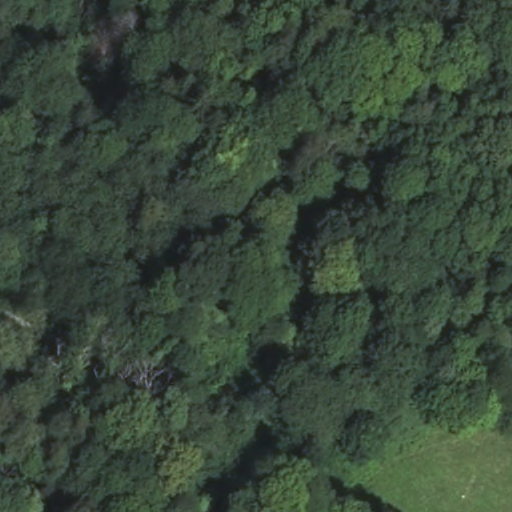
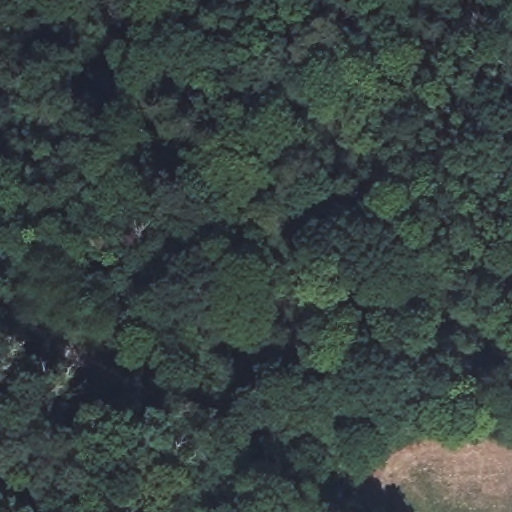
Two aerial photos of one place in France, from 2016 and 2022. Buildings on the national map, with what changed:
unchanged [(197,495),(222,506),(219,512),(190,512),(192,509),(197,495)]

